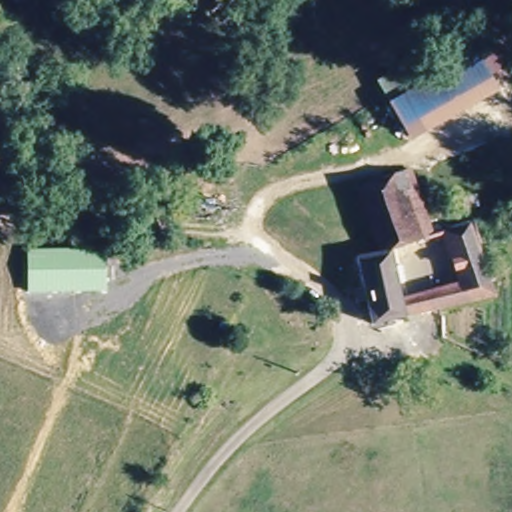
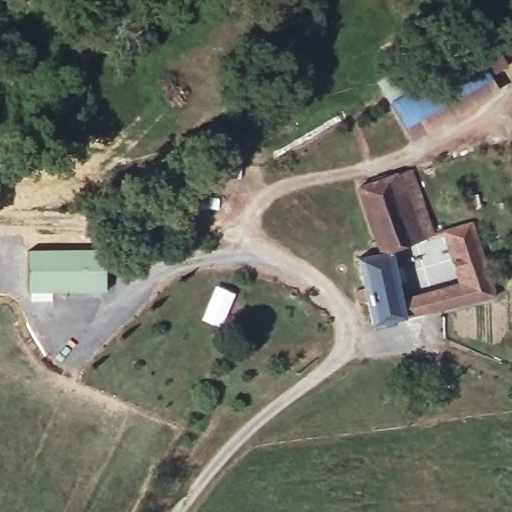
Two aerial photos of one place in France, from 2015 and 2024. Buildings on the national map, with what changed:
unchanged [(512,80),(415,135),(395,97),(490,41),(512,80)]
unchanged [(351,289),(364,285),(358,260),(378,254),(355,191),(407,171),(431,234),(390,250),(402,296),(459,285),(443,235),(468,225),(478,254),(492,295),(441,306),(441,307),(373,322),(368,301),(356,305),(351,289)]
unchanged [(27,250),(103,250),(104,290),(27,290),(27,250)]

